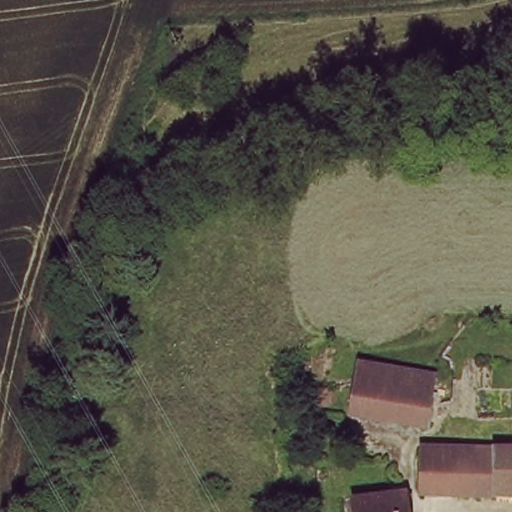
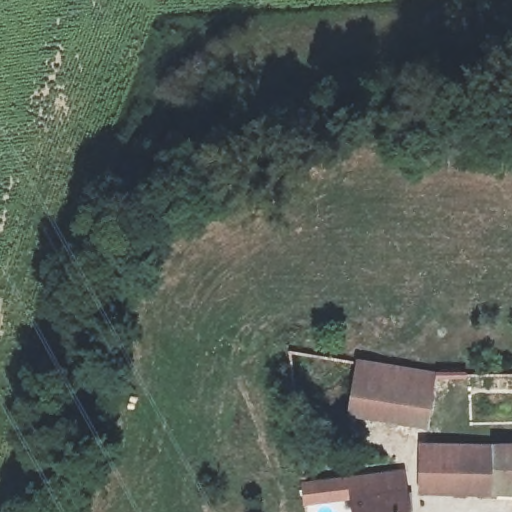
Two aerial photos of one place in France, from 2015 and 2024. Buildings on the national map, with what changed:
unchanged [(425,430),(349,420),(356,366),(432,375),(425,425),(425,430)]
unchanged [(512,456),(512,502),(417,505),(421,453),(512,456)]
unchanged [(414,500),(412,512),(353,512),(356,492),(414,500)]

